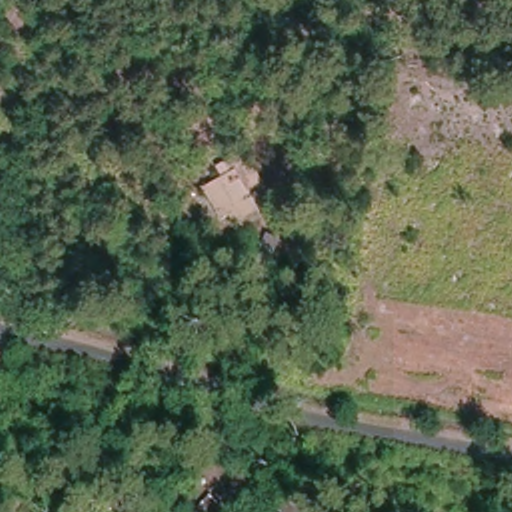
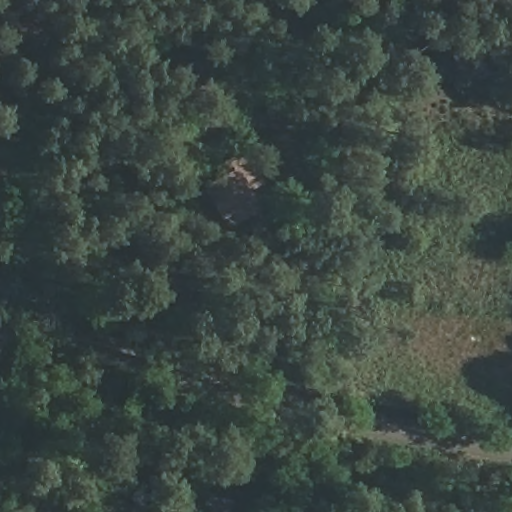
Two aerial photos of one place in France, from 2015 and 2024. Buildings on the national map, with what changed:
unchanged [(264,182),(248,190),(259,209),(236,223),(231,214),(223,218),(205,188),(225,176),(219,166),(247,151),(264,182)]

